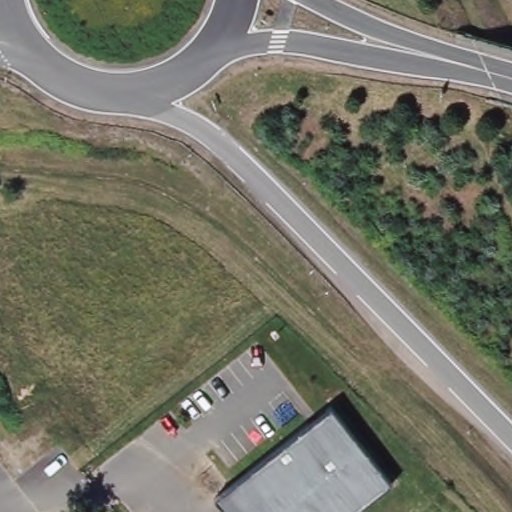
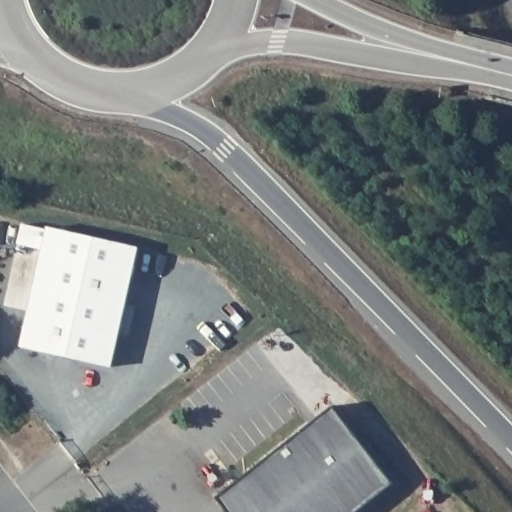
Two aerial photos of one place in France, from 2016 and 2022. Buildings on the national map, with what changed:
new [(46,229),(136,249),(109,368),(20,348),(46,229)]
unchanged [(331,406),(392,484),(357,512),(224,512),(213,499),(331,406)]

